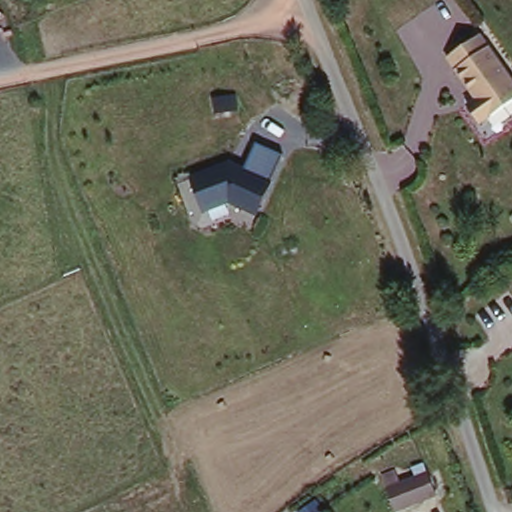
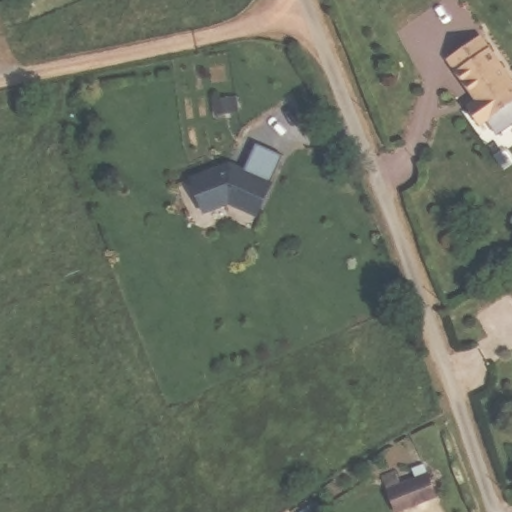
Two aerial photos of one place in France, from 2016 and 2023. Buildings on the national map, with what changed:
unchanged [(484,37),(512,86),(512,104),(482,122),(471,104),(476,101),(450,57),(484,37)]
unchanged [(189,178),(232,162),(246,168),(256,144),(283,155),(258,217),(229,205),(203,214),(189,178)]
unchanged [(387,494),(383,482),(396,474),(401,484),(424,474),(434,500),(397,512),(387,494)]

